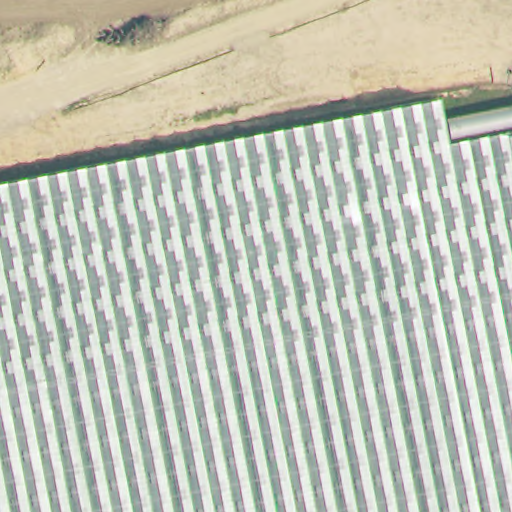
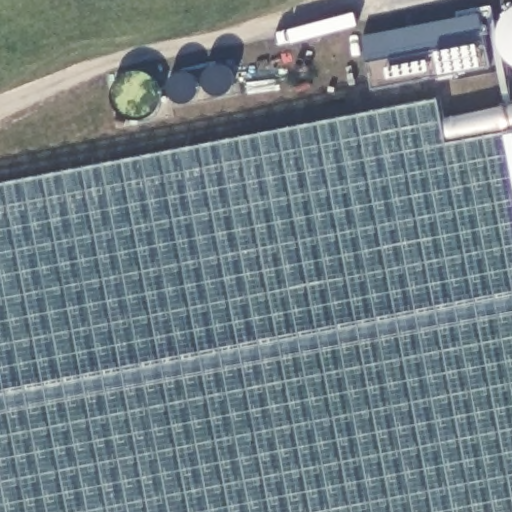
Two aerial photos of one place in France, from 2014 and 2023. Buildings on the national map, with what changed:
new [(481,14),(491,70),(373,90),(364,38),(481,14)]
unchanged [(428,98),(438,141),(512,125),(512,512),(0,512),(0,192),(428,98)]

